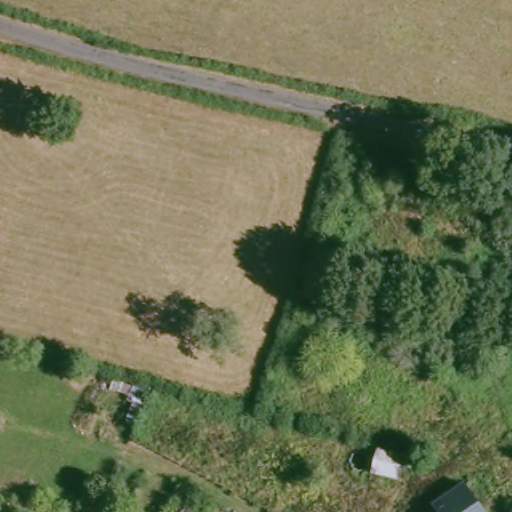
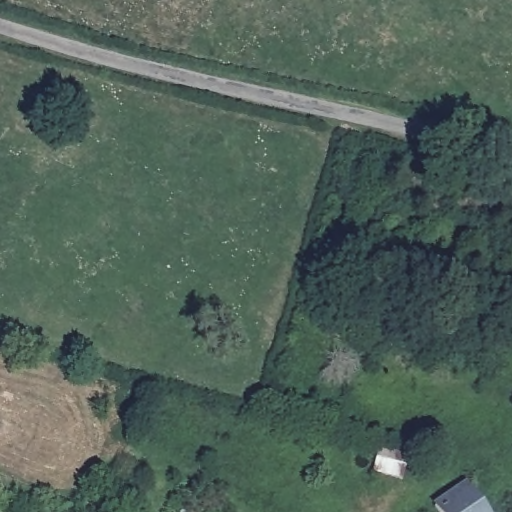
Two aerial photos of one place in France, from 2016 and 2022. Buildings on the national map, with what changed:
unchanged [(378,448),(410,456),(404,478),(374,472),(378,448)]
unchanged [(440,510),(470,487),(490,512),(442,512),(440,510)]

